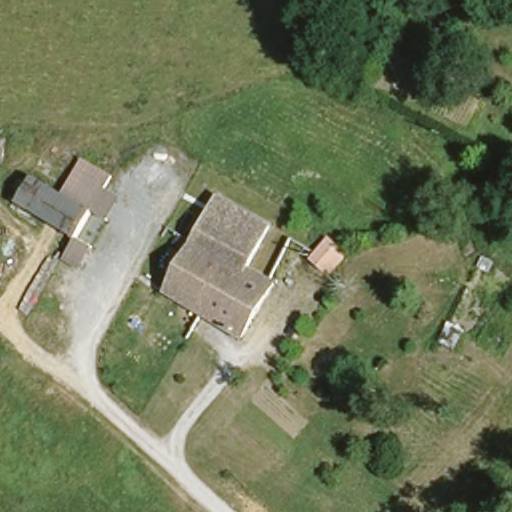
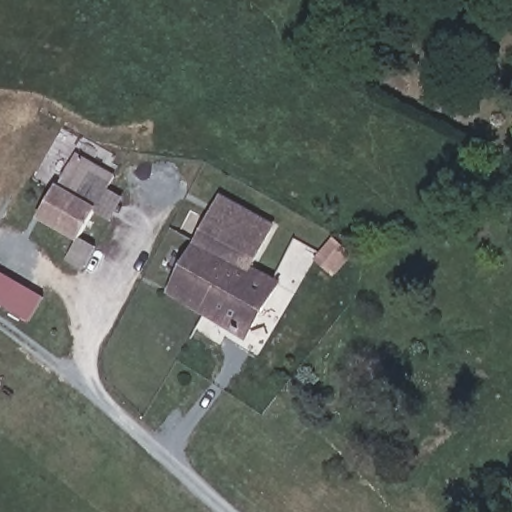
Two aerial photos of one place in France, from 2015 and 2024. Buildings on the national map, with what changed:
unchanged [(115,174),(108,187),(125,197),(111,220),(92,207),(78,233),(96,245),(83,269),(64,258),(74,236),(18,202),(35,175),(64,192),(85,158),(115,174)]
unchanged [(220,198),(267,227),(241,270),(270,287),(240,336),(164,289),(220,198)]
new [(27,320),(0,304),(0,273),(41,296),(27,320)]

